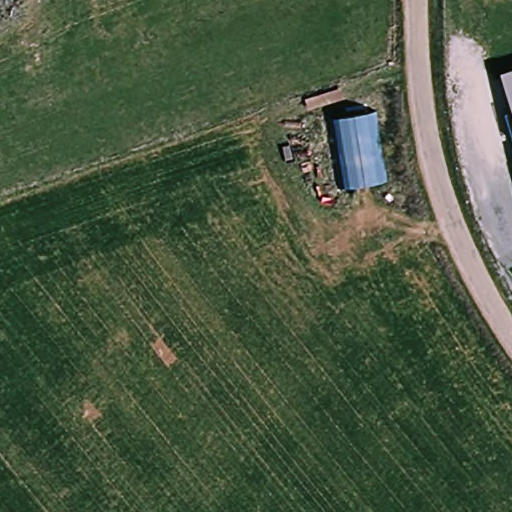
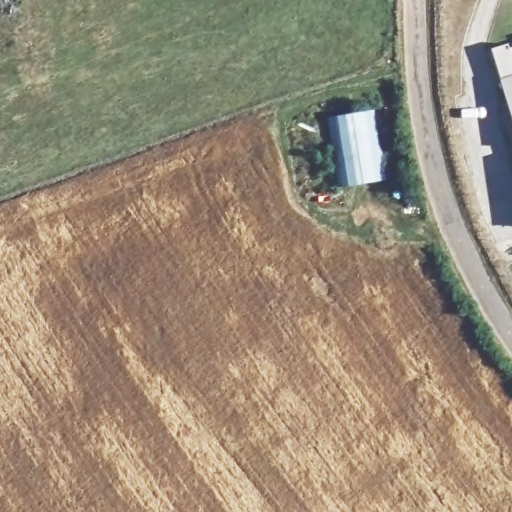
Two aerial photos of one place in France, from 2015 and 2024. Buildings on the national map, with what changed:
unchanged [(498,73),(512,68),(512,119),(498,73)]
unchanged [(330,119),(368,114),(378,184),(340,189),(330,119)]

